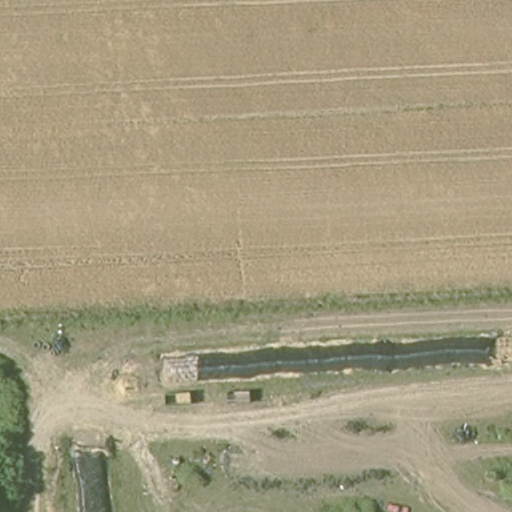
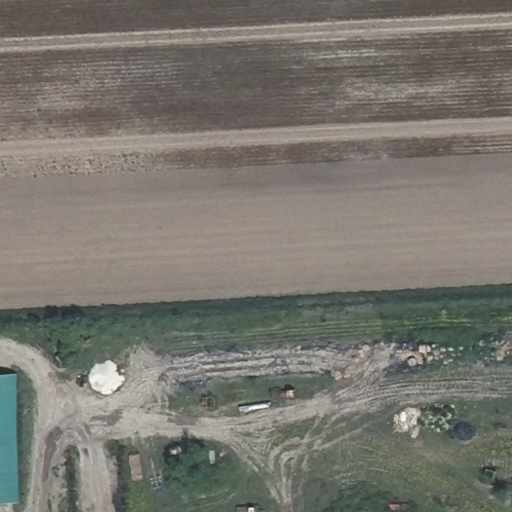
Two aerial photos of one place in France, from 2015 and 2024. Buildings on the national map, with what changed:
new [(15,374),(16,505),(0,505),(0,374),(15,374)]

